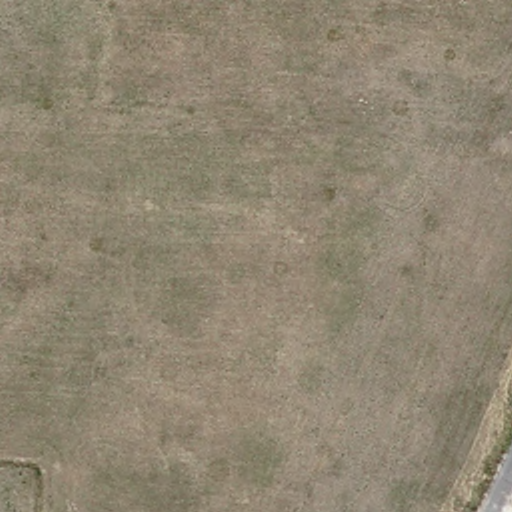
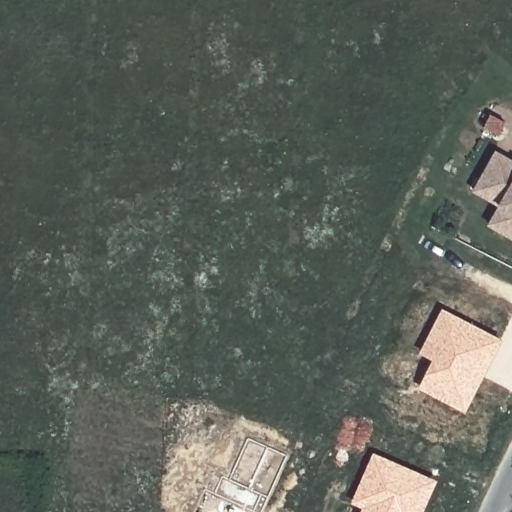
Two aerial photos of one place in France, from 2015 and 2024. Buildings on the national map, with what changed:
new [(488,225),(499,206),(472,190),(482,174),(495,151),(512,161),(512,239),(510,238),(488,225)]
new [(433,360),(420,353),(443,308),(504,339),(467,412),(419,388),(433,360)]
new [(263,512),(195,512),(206,489),(215,493),(221,476),(230,480),(247,439),(286,456),(263,512)]
new [(363,508),(351,503),(374,453),(438,481),(425,512),(361,512),(363,508)]

